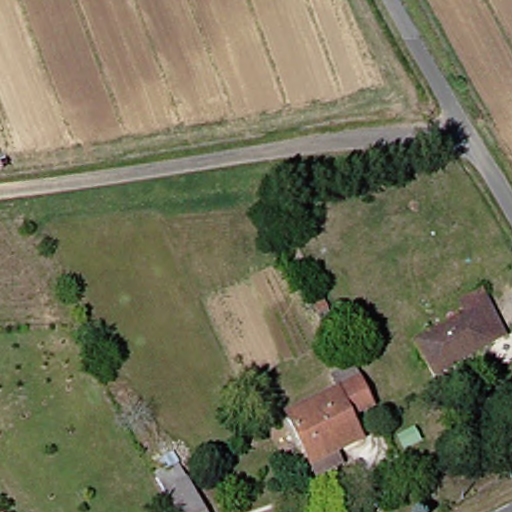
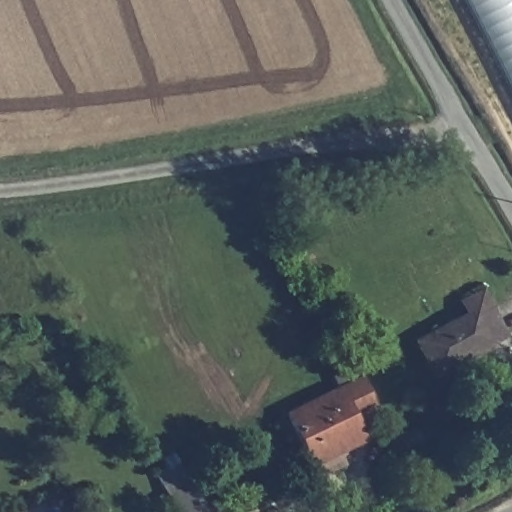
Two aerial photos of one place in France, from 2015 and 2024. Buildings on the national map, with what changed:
new [(512,0),(512,100),(462,0),(512,0)]
unchanged [(475,313),(467,297),(490,287),(504,313),(512,328),(512,337),(505,341),(445,373),(425,340),(475,313)]
unchanged [(343,453),(320,466),(294,415),(343,387),(337,375),(360,364),(380,405),(352,420),(359,433),(364,442),(343,453)]
unchanged [(188,467),(215,512),(180,512),(163,483),(188,467)]

